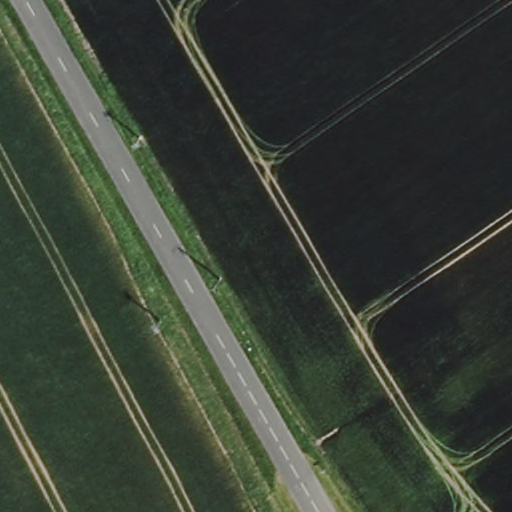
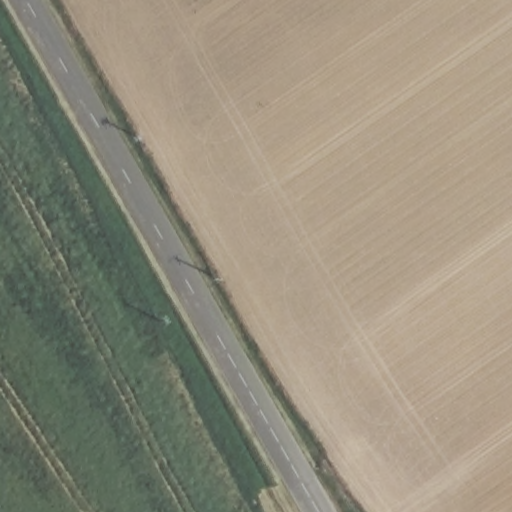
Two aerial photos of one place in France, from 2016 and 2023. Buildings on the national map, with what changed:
[]

